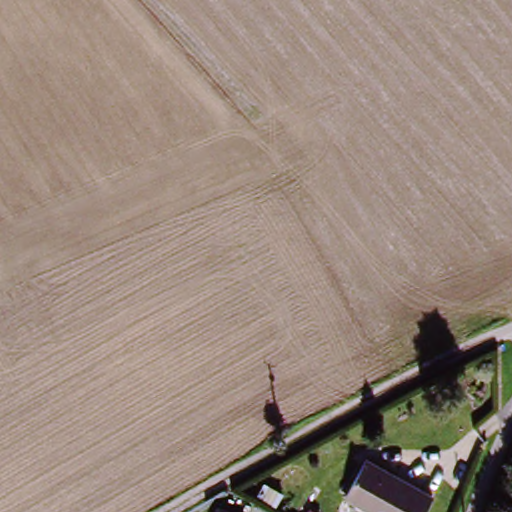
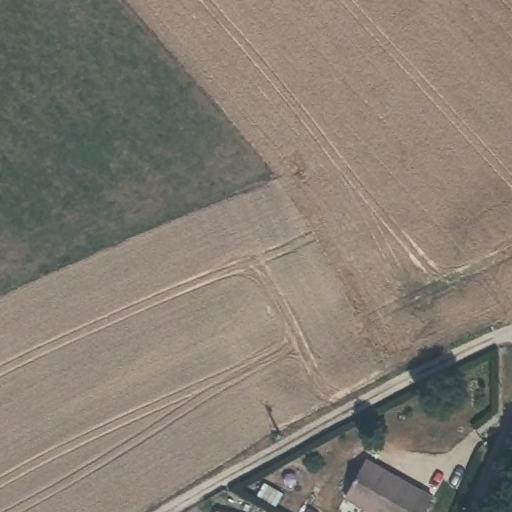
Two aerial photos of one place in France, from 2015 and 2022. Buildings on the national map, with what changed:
unchanged [(426,512),(370,512),(344,496),(365,466),(431,505),(426,512)]

